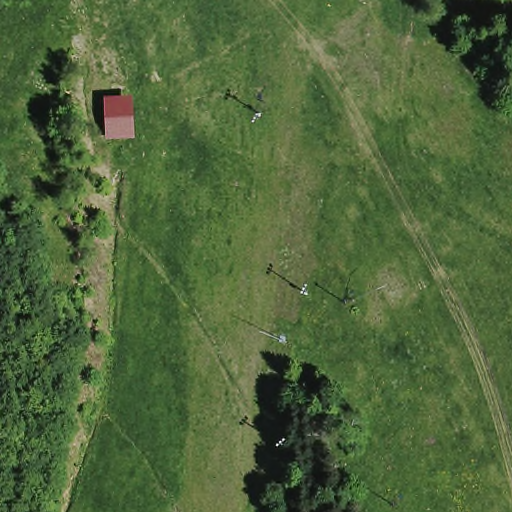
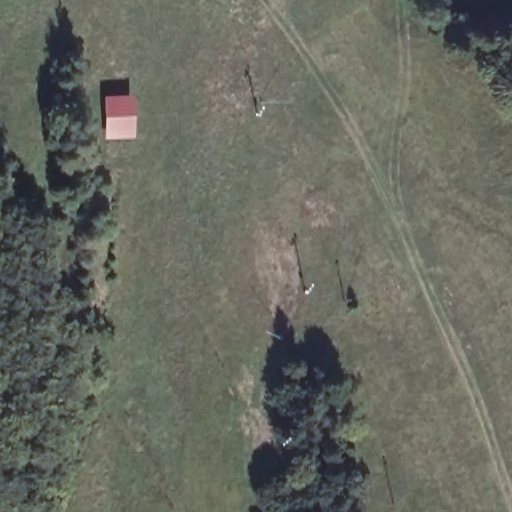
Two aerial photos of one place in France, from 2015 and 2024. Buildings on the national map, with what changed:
unchanged [(133,137),(105,138),(102,94),(132,95),(133,137)]

